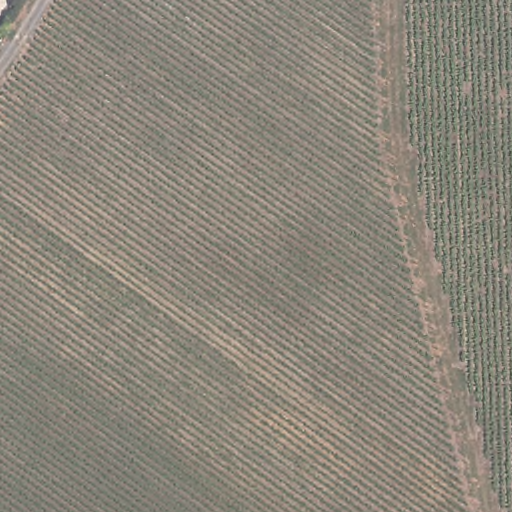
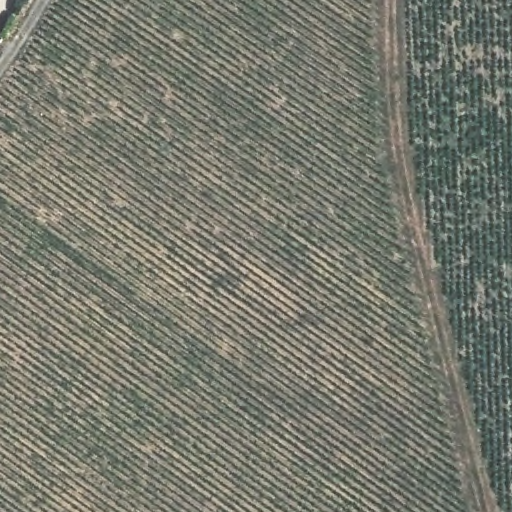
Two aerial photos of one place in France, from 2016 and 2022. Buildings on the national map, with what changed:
[]

